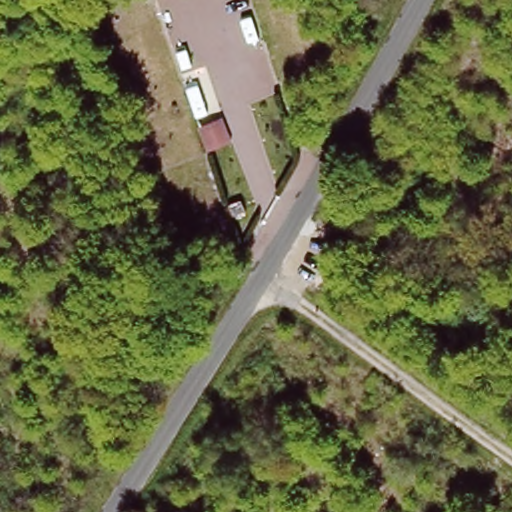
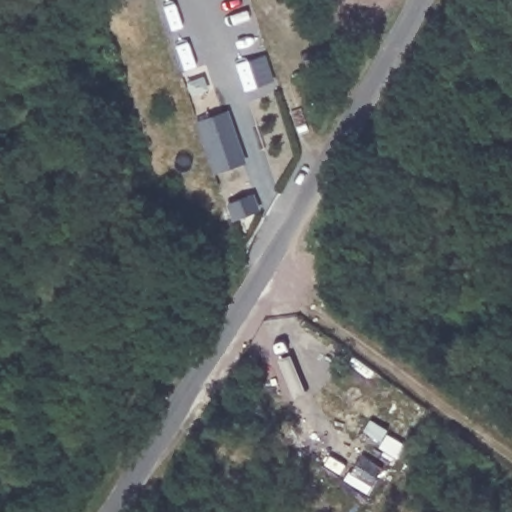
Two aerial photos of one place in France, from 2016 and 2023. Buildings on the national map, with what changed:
new [(230,113),(247,168),(215,177),(196,125),(230,113)]

